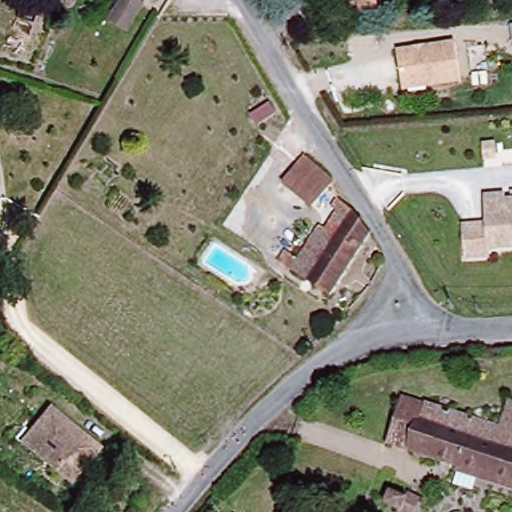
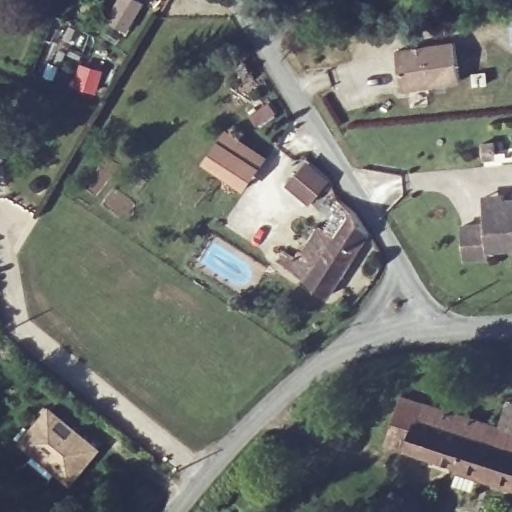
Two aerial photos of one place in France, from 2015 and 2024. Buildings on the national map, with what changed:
unchanged [(121,0),(133,0),(140,4),(134,14),(124,30),(109,22),(116,8),(121,0)]
unchanged [(335,0),(369,0),(370,9),(337,13),(335,0)]
unchanged [(456,41),(461,84),(404,90),(399,49),(456,41)]
new [(225,130),(267,158),(249,185),(207,158),(225,130)]
unchanged [(320,187),(307,205),(300,202),(278,185),(301,151),(320,187)]
unchanged [(325,292),(274,254),(282,243),(298,254),(334,198),(367,232),(325,292)]
unchanged [(489,260),(465,263),(461,230),(485,229),(483,216),(482,200),(502,199),(502,203),(512,203),(512,250),(490,252),(489,260)]
unchanged [(512,488),(385,446),(401,399),(512,436),(512,488)]
unchanged [(65,486),(15,444),(45,408),(95,451),(65,486)]

